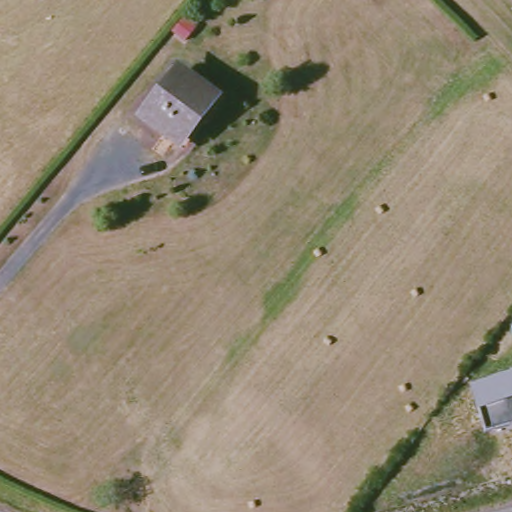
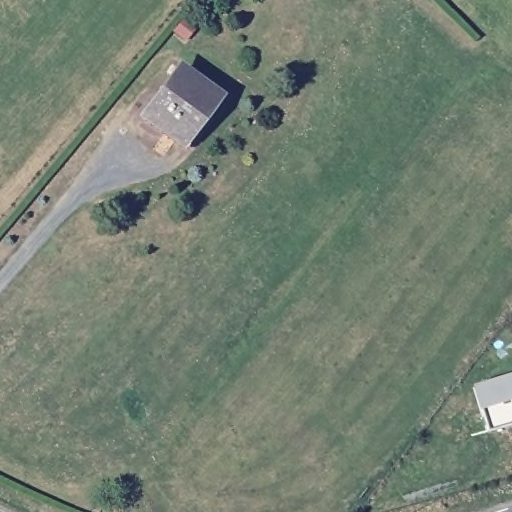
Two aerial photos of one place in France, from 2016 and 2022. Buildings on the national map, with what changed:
unchanged [(141,116),(172,75),(205,100),(173,141),(141,116)]
unchanged [(485,433),(471,389),(512,378),(512,426),(485,433)]

